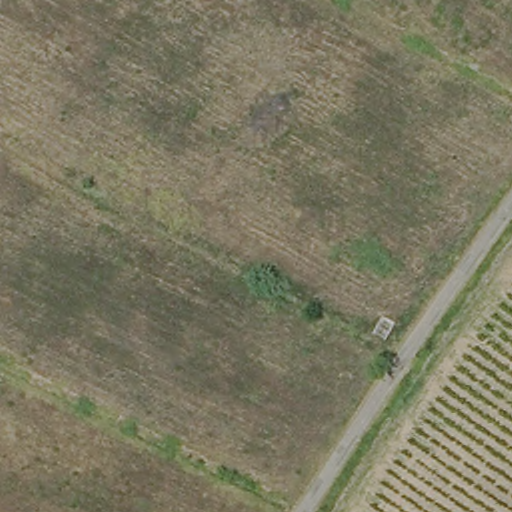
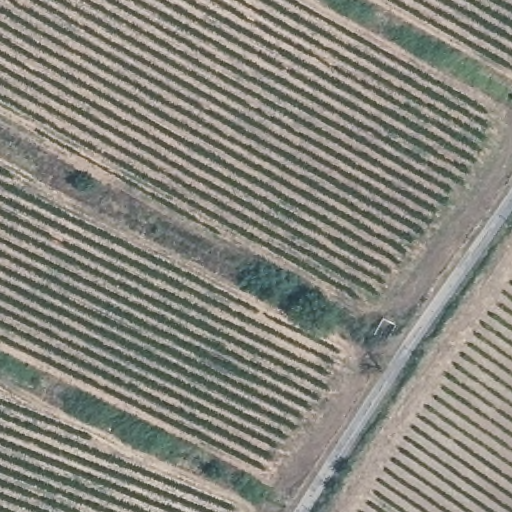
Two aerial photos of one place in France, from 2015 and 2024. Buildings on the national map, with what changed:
unchanged [(395,326),(388,342),(376,336),(385,321),(395,326)]

